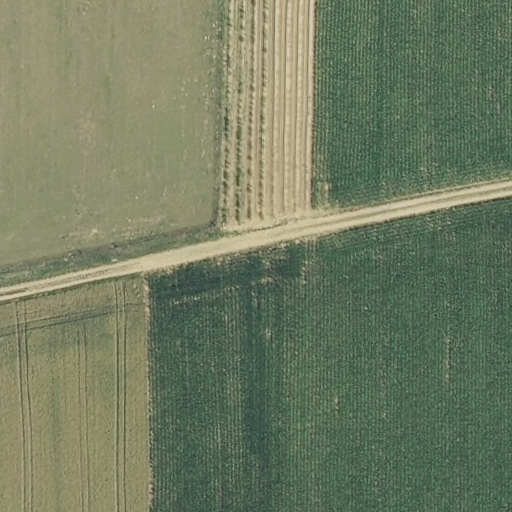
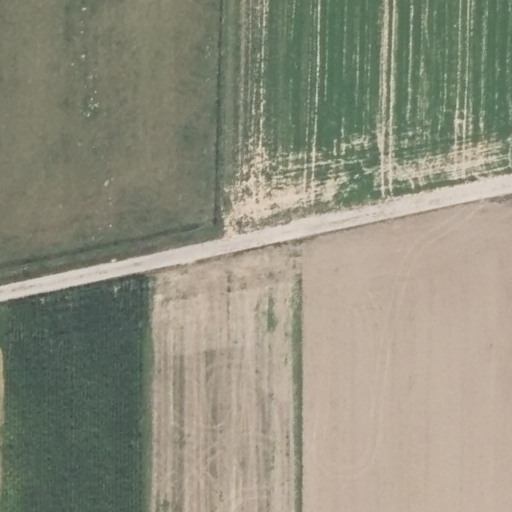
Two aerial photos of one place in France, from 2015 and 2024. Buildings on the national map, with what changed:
[]

